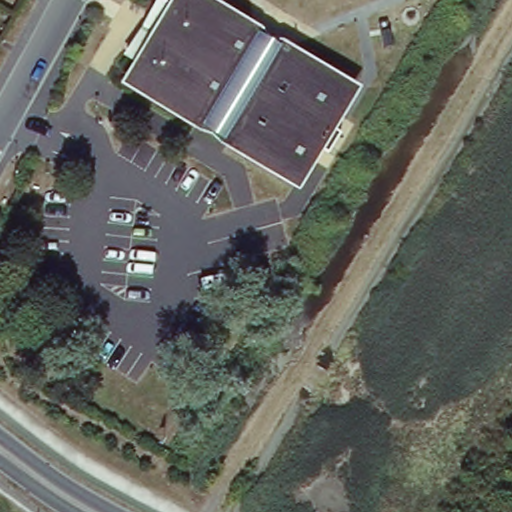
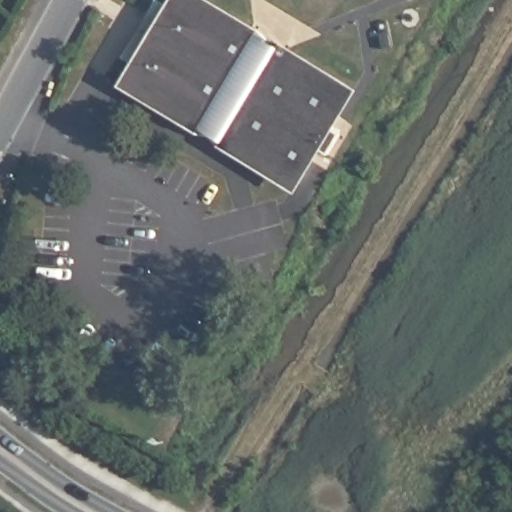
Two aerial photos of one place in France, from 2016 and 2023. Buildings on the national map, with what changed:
unchanged [(175,0),(205,0),(360,95),(300,198),(122,89),(175,0)]

